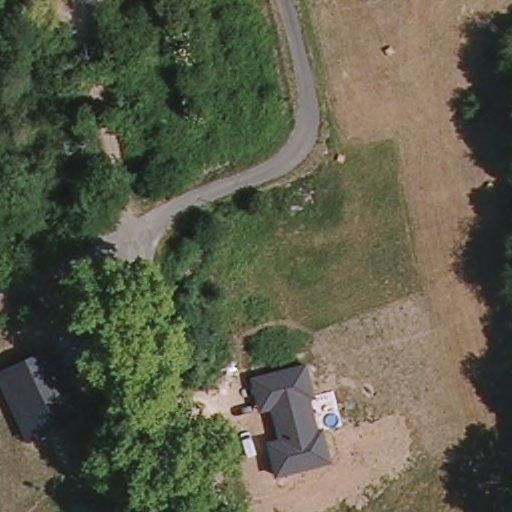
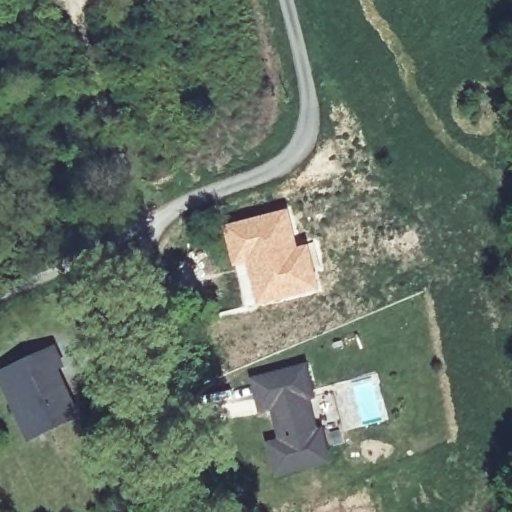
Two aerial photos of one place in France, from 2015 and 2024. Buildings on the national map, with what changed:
new [(289,209),(299,247),(310,245),(321,292),(257,307),(250,286),(247,287),(245,282),(244,282),(240,267),(233,267),(222,226),(289,209)]
unchanged [(0,371),(57,346),(67,368),(60,370),(80,417),(29,441),(0,372),(0,371)]
unchanged [(316,398),(311,400),(319,430),(325,428),(332,462),(277,477),(269,441),(277,438),(270,410),(260,412),(252,377),(307,363),(316,398)]

